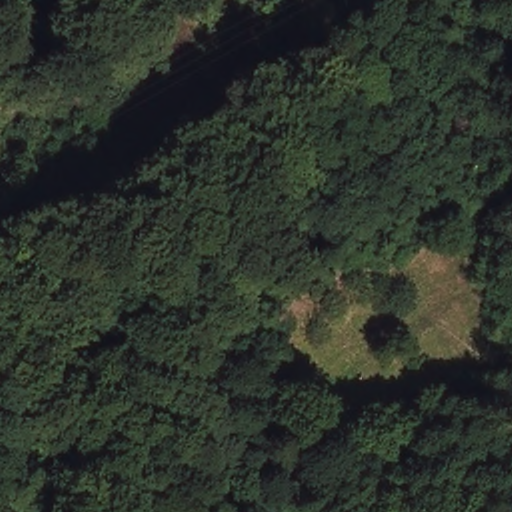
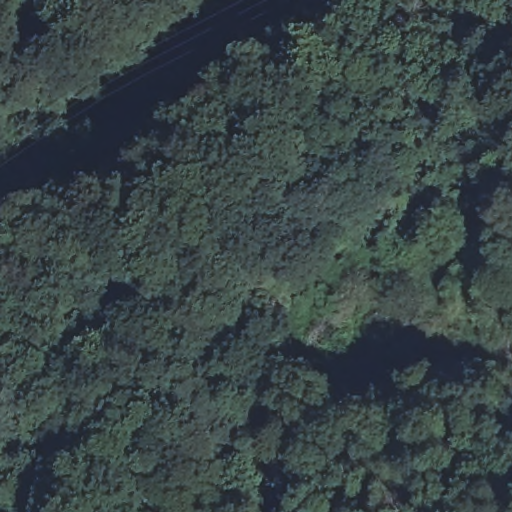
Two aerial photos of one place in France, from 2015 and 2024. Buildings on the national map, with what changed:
unchanged [(343,399),(351,417),(329,432),(320,413),(343,399)]

